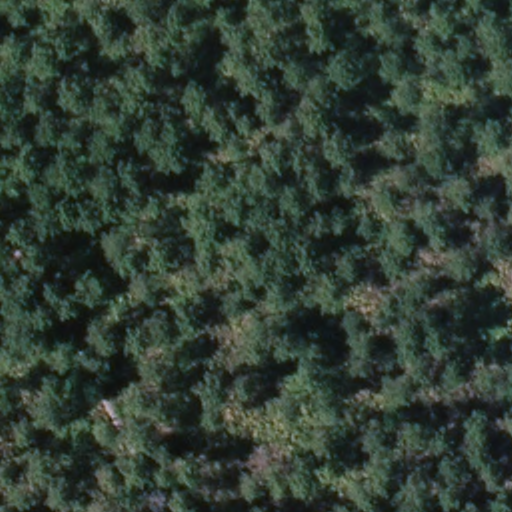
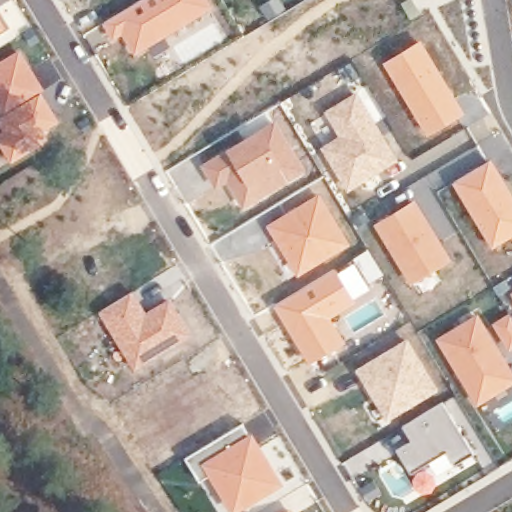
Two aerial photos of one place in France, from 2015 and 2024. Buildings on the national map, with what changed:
new [(139,0),(208,0),(213,7),(132,55),(121,34),(111,40),(102,22),(139,0)]
new [(7,28),(0,33),(0,17),(7,28)]
new [(420,39),(465,113),(427,135),(382,62),(420,39)]
new [(19,49),(42,90),(0,115),(0,61),(19,49)]
new [(2,131),(0,127),(0,115),(42,90),(59,121),(43,130),(47,138),(10,161),(0,146),(0,133),(2,131)]
new [(338,135),(324,111),(358,90),(398,160),(345,191),(320,146),(338,135)]
new [(276,118),(307,171),(242,209),(226,183),(214,189),(200,164),(276,118)]
new [(512,192),(512,236),(491,249),(452,182),(491,159),(512,192)]
new [(319,192),(350,244),(296,276),(266,224),(319,192)]
new [(415,198),(452,259),(411,286),(373,224),(415,198)]
new [(352,262),(351,259),(367,249),(383,274),(365,286),(362,281),(355,286),(357,291),(362,289),(365,293),(355,299),(357,302),(332,318),(346,342),(309,364),(273,305),(335,268),(352,262)]
new [(132,290),(146,311),(169,296),(192,333),(133,370),(97,311),(132,290)]
new [(512,370),(512,384),(476,406),(435,338),(477,312),(512,370)]
new [(512,318),(512,349),(507,352),(490,324),(509,313),(512,318)]
new [(407,337),(438,388),(386,420),(355,369),(407,337)]
new [(410,439),(401,426),(443,401),(471,451),(451,463),(444,452),(409,472),(395,448),(410,439)]
new [(287,484),(239,512),(226,512),(219,500),(217,501),(207,485),(202,487),(183,457),(242,422),(287,484)]
new [(295,512),(282,512),(292,506),(295,512)]

